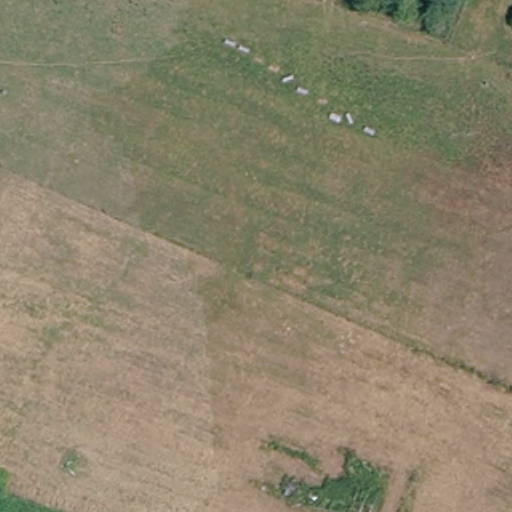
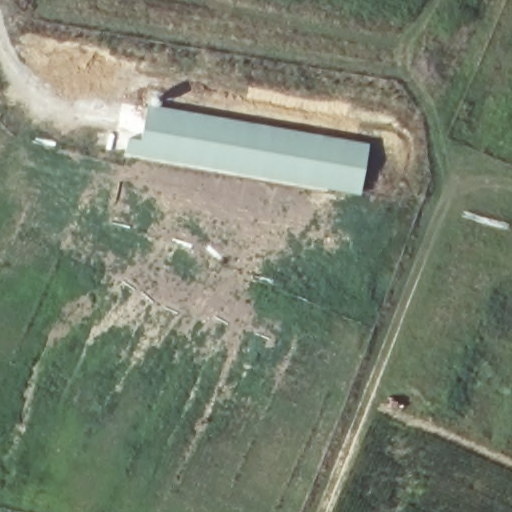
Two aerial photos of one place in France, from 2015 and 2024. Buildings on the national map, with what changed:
new [(359,195),(123,154),(127,136),(141,139),(146,104),(367,143),(359,195)]

